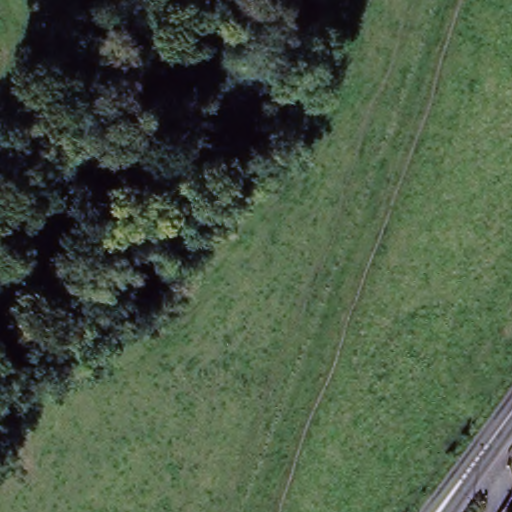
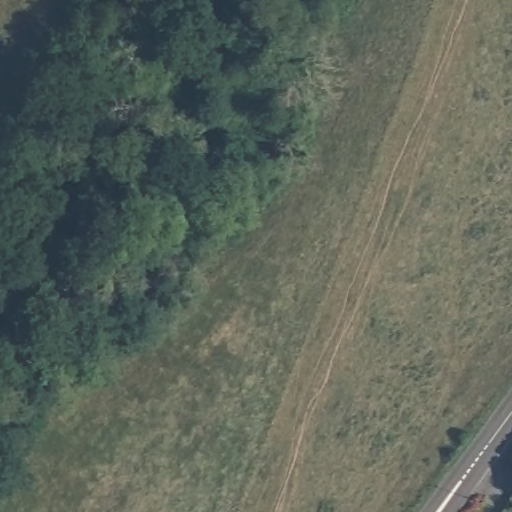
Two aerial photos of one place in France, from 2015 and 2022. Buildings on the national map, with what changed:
[]

